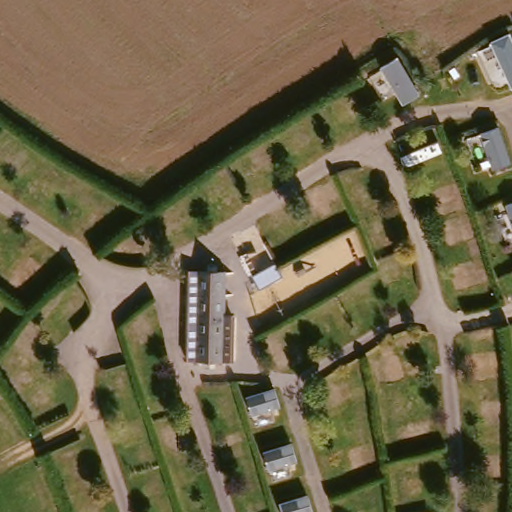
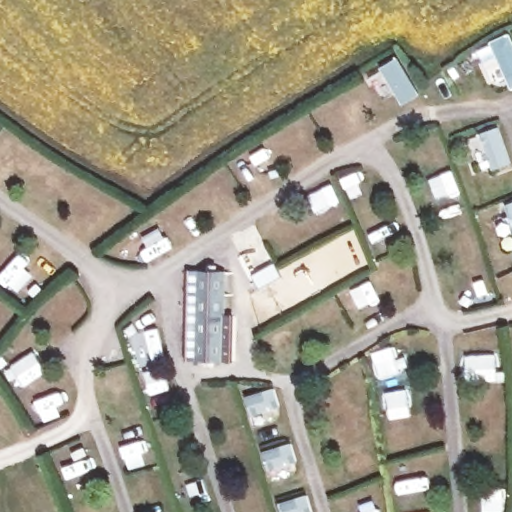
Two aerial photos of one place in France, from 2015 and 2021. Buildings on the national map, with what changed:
unchanged [(221,268),(221,306),(230,306),(230,351),(192,351),(192,328),(179,327),(179,305),(192,305),(192,268),(221,268)]

